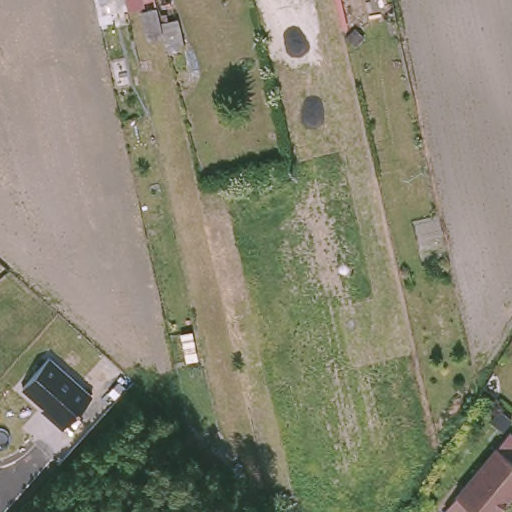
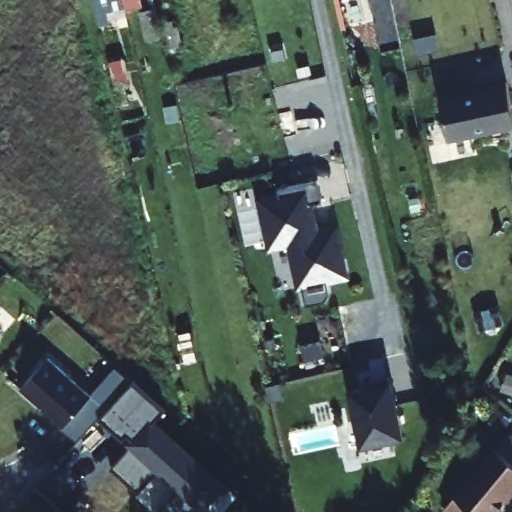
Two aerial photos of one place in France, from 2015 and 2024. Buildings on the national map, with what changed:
unchanged [(94,15),(91,3),(106,0),(107,11),(94,15)]
unchanged [(112,0),(132,0),(133,5),(122,7),(114,10),(112,0)]
new [(462,92),(466,95),(473,93),(472,87),(506,80),(512,109),(512,126),(447,140),(438,97),(462,92)]
new [(279,197),(277,190),(317,181),(322,203),(310,206),(317,237),(327,235),(327,232),(336,230),(347,278),(299,288),(290,245),(270,249),(260,201),(279,197)]
unchanged [(92,395),(63,426),(42,408),(45,404),(25,385),(52,354),(92,395)]
new [(92,395),(117,366),(135,381),(166,409),(156,420),(227,483),(205,509),(208,512),(167,512),(162,507),(178,490),(158,470),(140,491),(113,466),(131,447),(101,416),(77,440),(63,426),(92,395)]
new [(370,390),(368,383),(388,380),(401,439),(361,447),(350,394),(370,390)]
unchanged [(452,502),(512,433),(512,496),(498,512),(487,512),(482,508),(479,512),(463,512),(452,502)]

